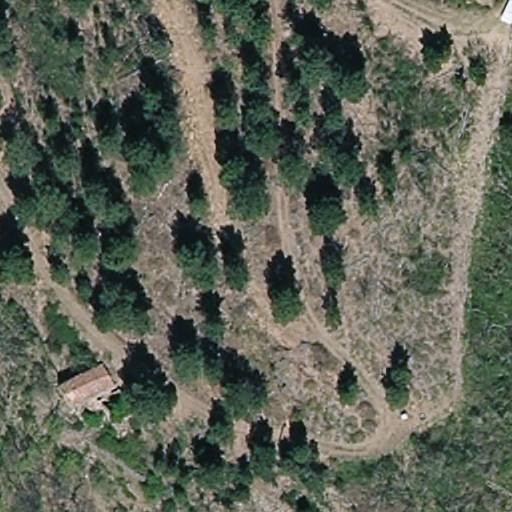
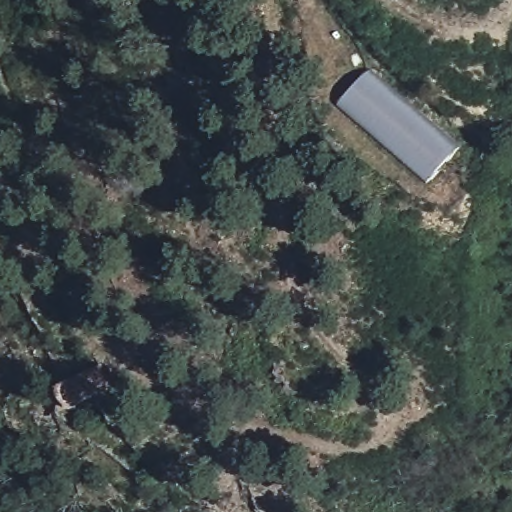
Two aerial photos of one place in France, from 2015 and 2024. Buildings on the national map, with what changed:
new [(372,69),(462,146),(429,184),(343,106),(372,69)]
unchanged [(106,362),(133,417),(114,430),(97,398),(72,413),(58,385),(106,362)]

